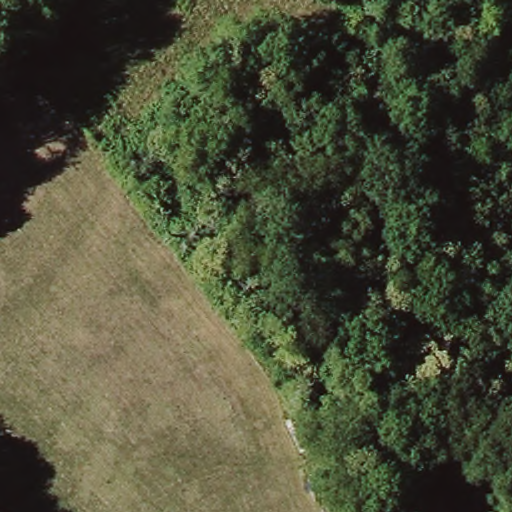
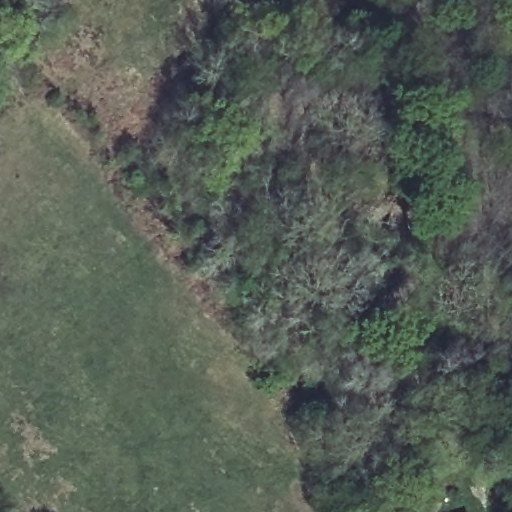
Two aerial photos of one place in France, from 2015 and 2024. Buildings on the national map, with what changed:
unchanged [(421,452),(441,447),(452,491),(432,496),(421,452)]

